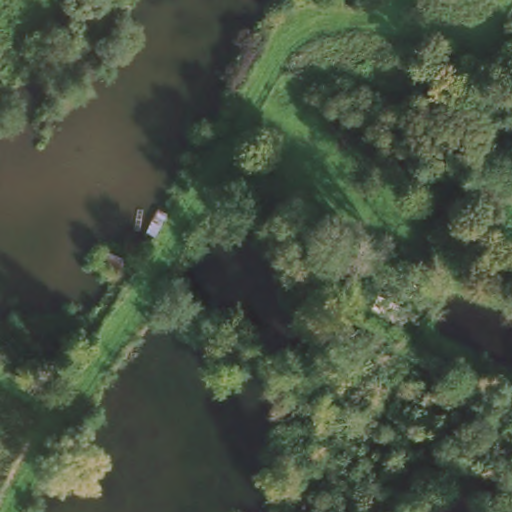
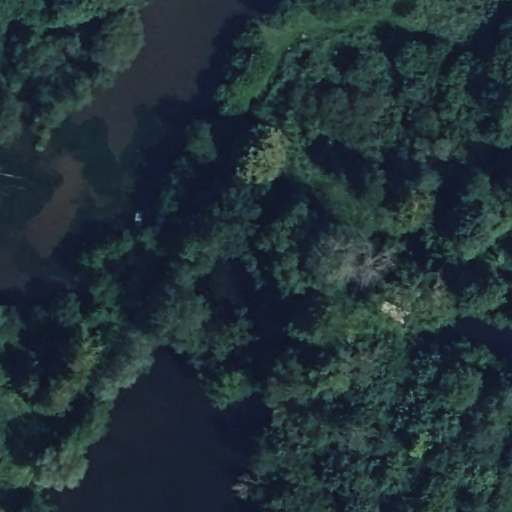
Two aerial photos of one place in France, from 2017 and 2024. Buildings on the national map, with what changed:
unchanged [(107,248),(126,254),(123,273),(102,267),(107,248)]

